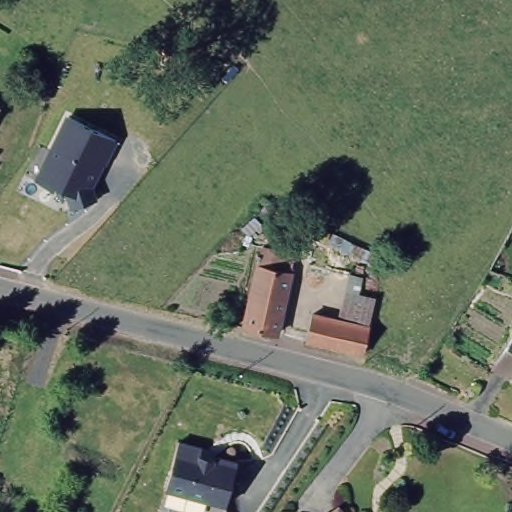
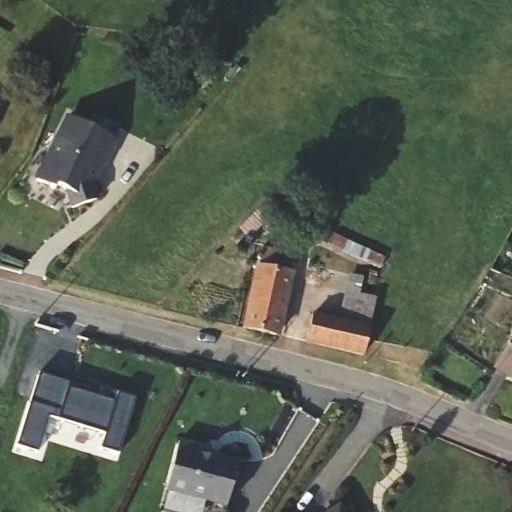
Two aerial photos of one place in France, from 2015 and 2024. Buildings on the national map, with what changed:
unchanged [(0,106),(0,102),(2,102),(0,106)]
unchanged [(68,196),(33,177),(67,112),(120,141),(95,187),(98,200),(70,209),(68,196)]
unchanged [(371,249),(360,287),(347,285),(351,260),(325,249),(332,232),(371,249)]
unchanged [(292,250),(273,328),(239,320),(257,242),(292,250)]
unchanged [(338,318),(347,285),(360,287),(373,291),(359,351),(296,338),(303,311),(338,318)]
unchanged [(510,325),(512,322),(512,327),(510,325)]
unchanged [(508,380),(488,367),(512,336),(512,373),(508,380)]
new [(97,385),(95,390),(65,380),(112,395),(115,386),(132,392),(114,448),(96,442),(101,427),(45,410),(33,445),(13,438),(37,365),(67,375),(97,385)]
unchanged [(164,493),(182,440),(240,459),(229,510),(164,493)]
unchanged [(332,499),(342,512),(315,512),(332,499)]

